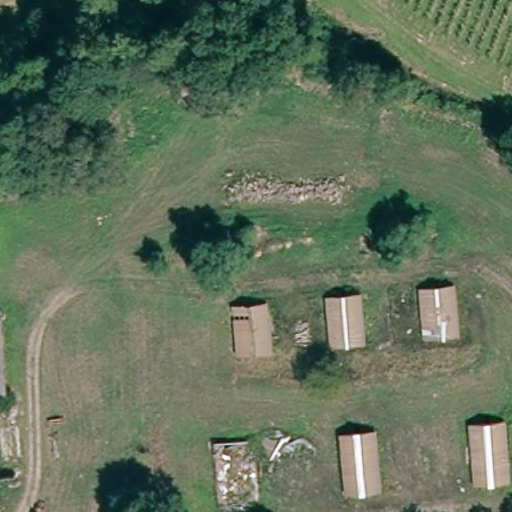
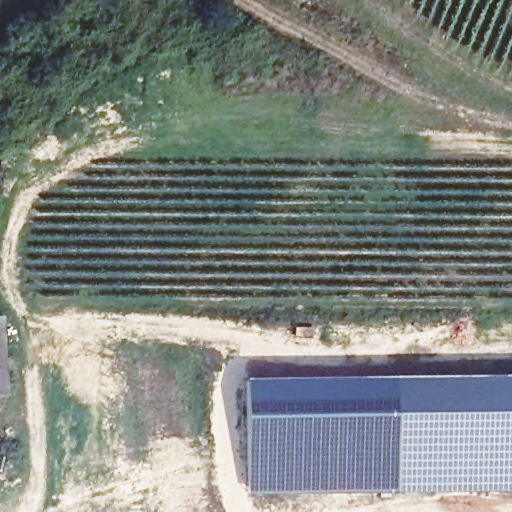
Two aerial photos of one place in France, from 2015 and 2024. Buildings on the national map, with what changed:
demolished [(461,336),(426,340),(417,286),(454,284),(461,336)]
demolished [(369,343),(332,345),(324,295),(362,290),(369,343)]
demolished [(272,350),(237,354),(233,303),(268,302),(272,350)]
new [(397,491),(247,490),(245,376),(394,375),(397,491)]
new [(397,491),(394,375),(512,375),(512,490),(397,491)]
demolished [(512,451),(512,475),(478,478),(471,420),(508,416),(512,451)]
demolished [(383,483),(348,488),(341,431),(376,427),(383,483)]
demolished [(245,435),(254,493),(219,497),(213,440),(245,435)]

